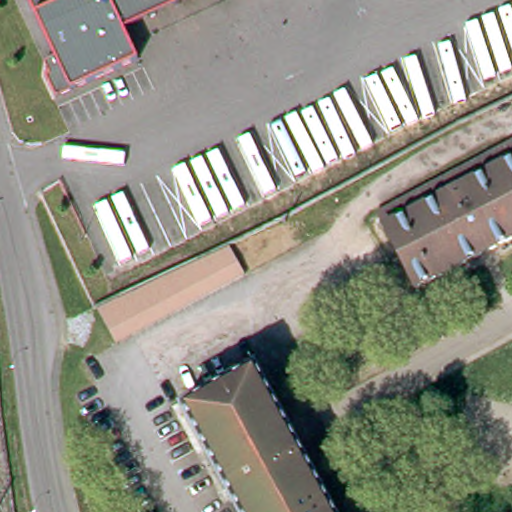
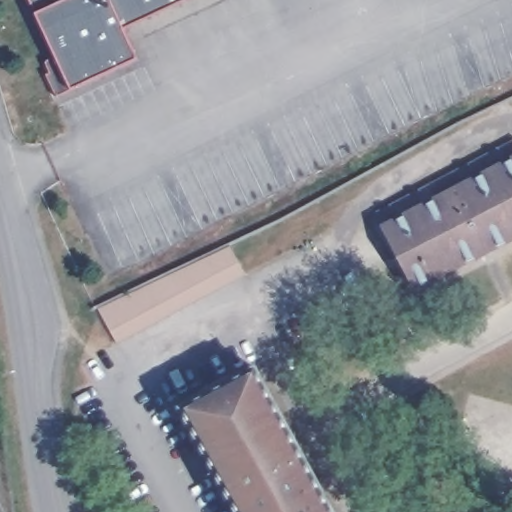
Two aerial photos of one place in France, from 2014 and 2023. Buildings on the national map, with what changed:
unchanged [(123,29),(138,62),(73,91),(57,100),(47,76),(52,74),(45,61),(54,52),(37,16),(30,0),(188,0),(123,29)]
unchanged [(512,145),(512,240),(412,291),(374,216),(512,145)]
unchanged [(109,347),(105,338),(92,311),(147,285),(225,249),(237,271),(240,279),(164,319),(109,347)]
unchanged [(252,370),(329,512),(234,512),(179,411),(252,370)]

